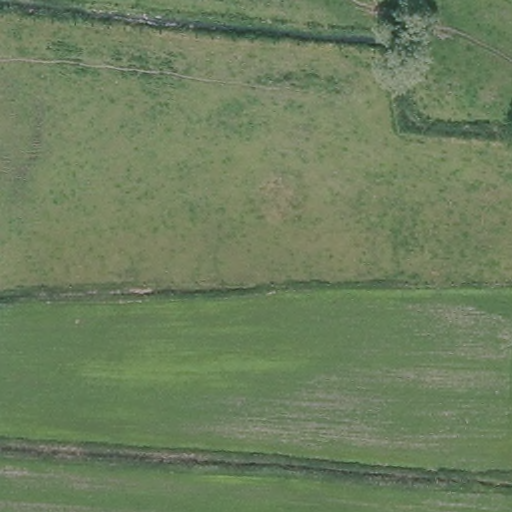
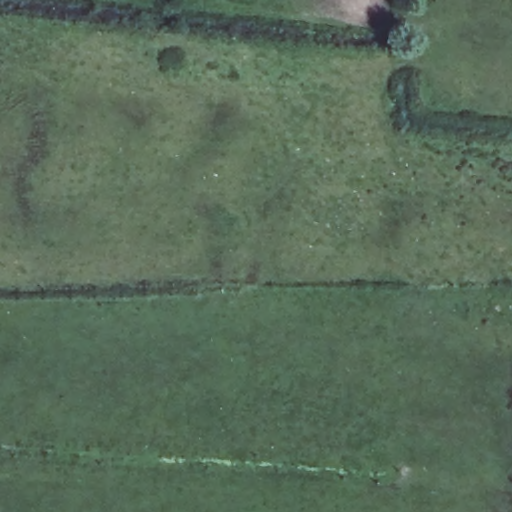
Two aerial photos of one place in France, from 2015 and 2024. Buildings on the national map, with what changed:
[]

